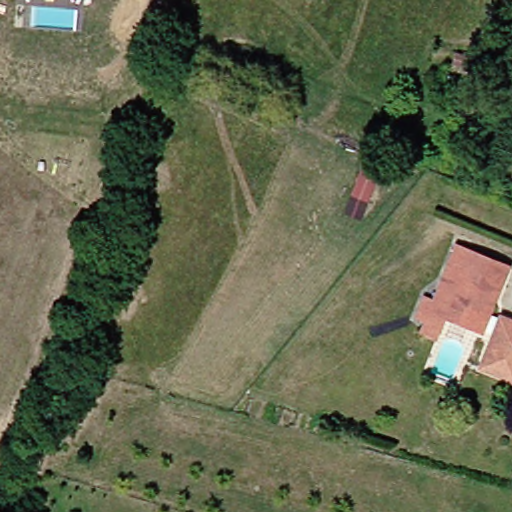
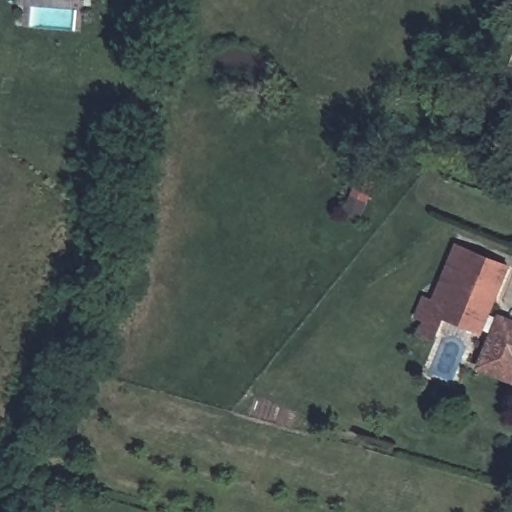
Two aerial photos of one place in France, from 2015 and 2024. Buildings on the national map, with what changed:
unchanged [(421,340),(424,328),(413,323),(421,306),(426,308),(449,248),(501,267),(484,315),(512,325),(512,376),(512,377),(481,366),(492,335),(473,328),(471,334),(443,323),(436,346),(421,340)]

